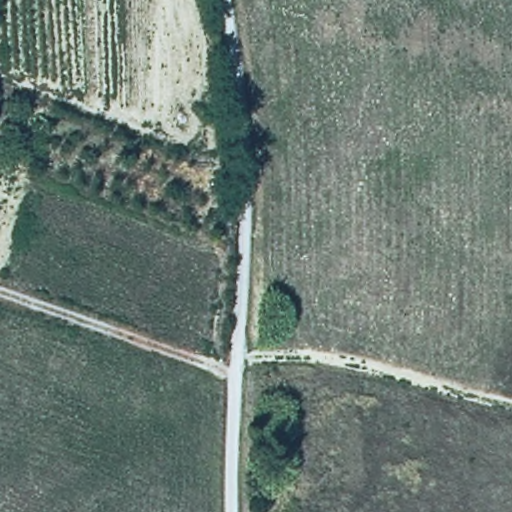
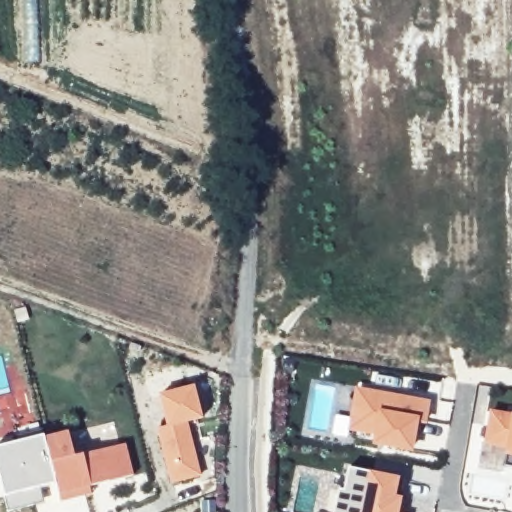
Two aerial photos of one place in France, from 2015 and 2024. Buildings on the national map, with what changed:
new [(202,418),(187,422),(200,476),(170,483),(155,429),(165,427),(157,395),(192,386),(202,418)]
new [(382,395),(392,397),(427,402),(423,422),(415,420),(410,448),(375,442),(377,432),(355,428),(357,416),(352,415),(357,390),(382,395)]
new [(512,469),(502,467),(507,447),(484,443),(490,412),(512,416),(512,469)]
new [(132,476),(77,490),(78,496),(59,501),(43,437),(67,432),(74,456),(124,444),(132,476)]
new [(403,480),(400,497),(398,512),(332,512),(337,489),(342,491),(347,467),(398,477),(403,480)]

